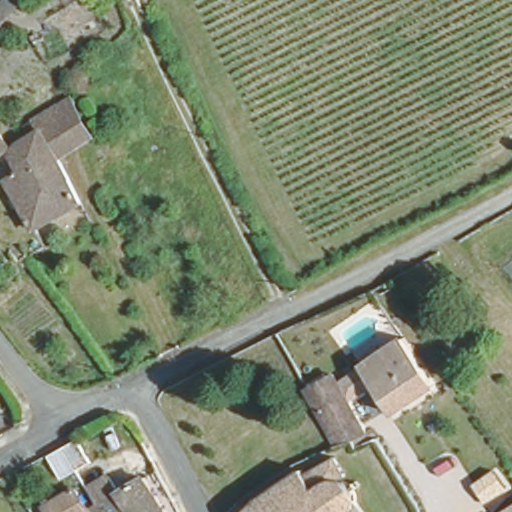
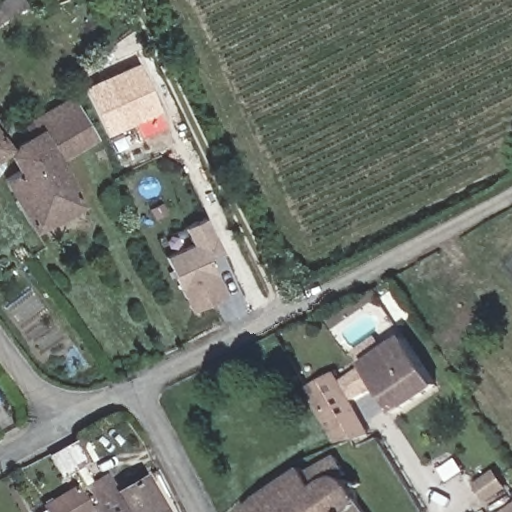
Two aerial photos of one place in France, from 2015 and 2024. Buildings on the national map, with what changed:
unchanged [(83,53),(70,61),(65,54),(80,46),(83,53)]
new [(107,133),(85,87),(136,63),(157,108),(107,133)]
unchanged [(37,114),(77,93),(99,132),(91,136),(59,153),(41,121),(37,114)]
unchanged [(59,153),(82,198),(36,228),(4,171),(19,161),(12,149),(15,144),(17,139),(20,135),(41,121),(59,153)]
unchanged [(0,148),(0,127),(10,139),(0,148)]
new [(196,243),(187,226),(208,216),(224,249),(210,256),(230,295),(195,311),(169,257),(196,243)]
unchanged [(1,242),(6,238),(11,235),(20,246),(15,249),(8,253),(1,242)]
unchanged [(411,350),(435,385),(393,411),(365,363),(375,356),(394,344),(390,335),(397,330),(411,350)]
unchanged [(367,431),(355,437),(339,443),(308,391),(335,375),(367,431)]
unchanged [(44,446),(54,441),(76,430),(89,454),(68,464),(56,471),(44,446)]
unchanged [(342,467),(338,471),(346,473),(348,477),(351,482),(370,512),(241,512),(240,511),(252,496),(301,462),(306,467),(331,451),(342,467)]
unchanged [(142,471),(166,511),(164,512),(130,512),(129,510),(125,512),(100,512),(94,502),(142,471)]
unchanged [(100,512),(51,512),(45,501),(75,484),(87,506),(94,502),(100,512)]
unchanged [(512,504),(512,512),(500,512),(512,504)]
unchanged [(129,510),(130,512),(125,512),(129,510)]

